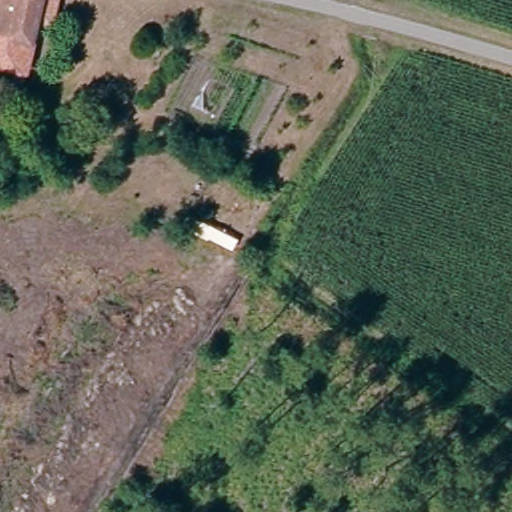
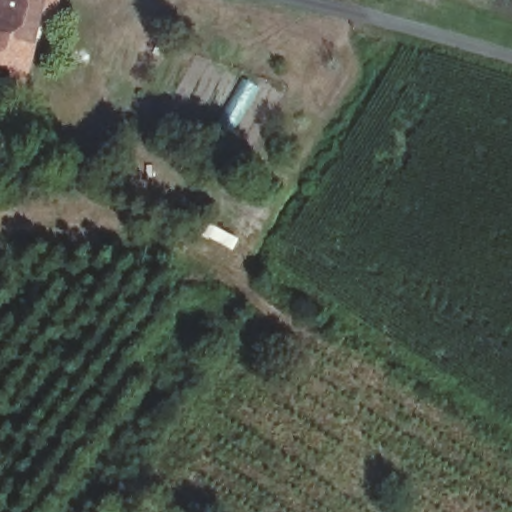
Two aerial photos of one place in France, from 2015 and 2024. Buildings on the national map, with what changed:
unchanged [(36,41),(0,33),(0,0),(45,0),(36,41)]

